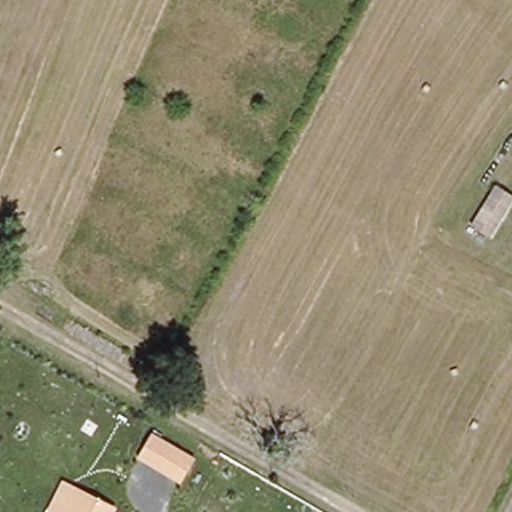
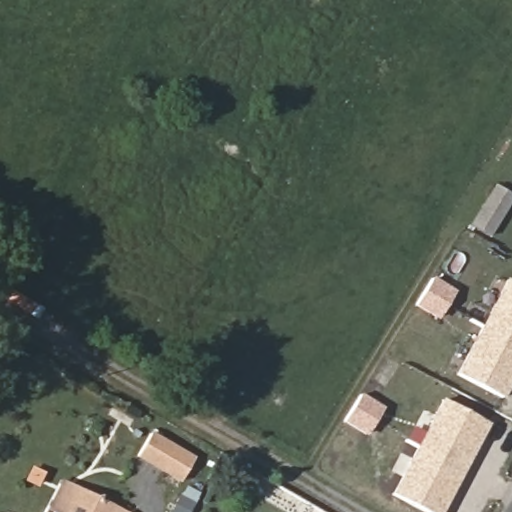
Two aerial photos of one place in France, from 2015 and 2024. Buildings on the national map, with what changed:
new [(496,188),(512,197),(512,198),(505,213),(490,237),(473,227),(487,202),(496,188)]
new [(502,399),(459,376),(510,280),(512,281),(512,380),(502,399)]
new [(490,425),(443,512),(422,512),(391,495),(444,401),(490,425)]
unchanged [(152,432),(192,457),(177,482),(136,458),(152,432)]
unchanged [(77,488),(119,510),(117,512),(66,512),(77,488)]

